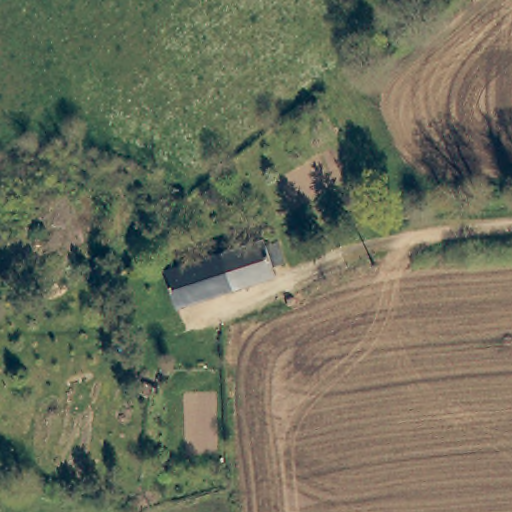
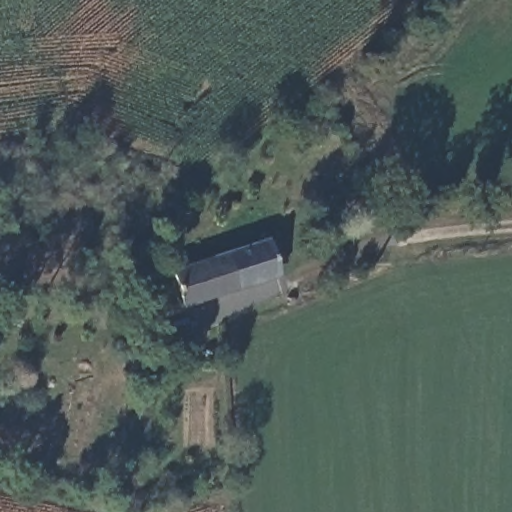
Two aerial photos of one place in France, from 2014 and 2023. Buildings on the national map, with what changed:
unchanged [(227,289),(219,255),(259,242),(261,248),(272,244),(278,264),(268,267),(270,275),(227,289)]
unchanged [(227,289),(192,300),(173,307),(164,273),(219,255),(227,289)]

